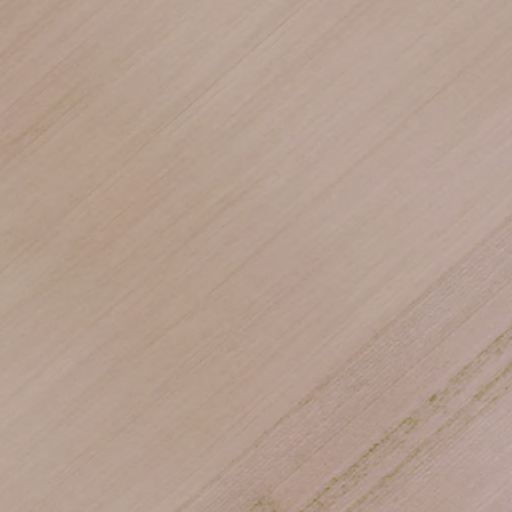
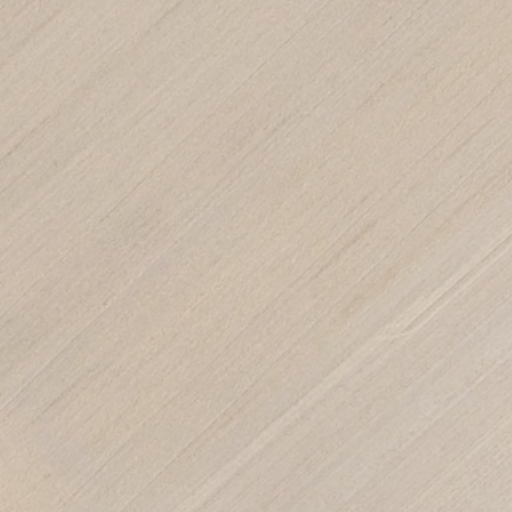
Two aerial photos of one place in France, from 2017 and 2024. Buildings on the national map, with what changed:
[]

